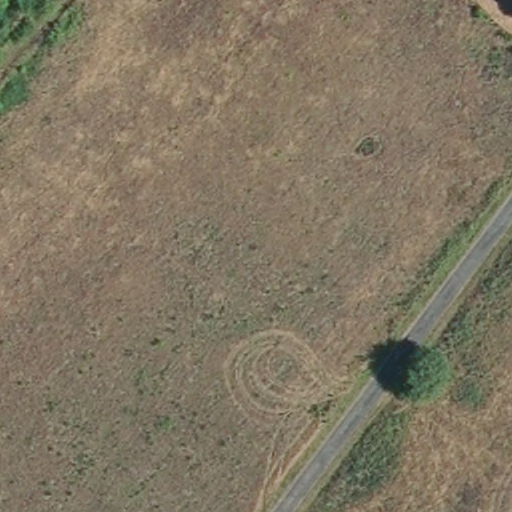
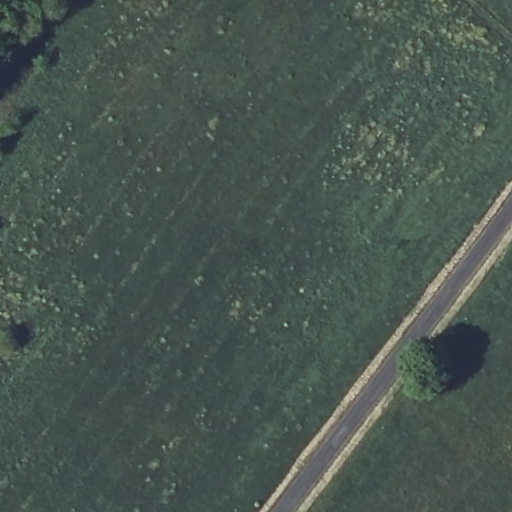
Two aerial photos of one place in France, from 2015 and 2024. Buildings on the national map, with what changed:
[]

